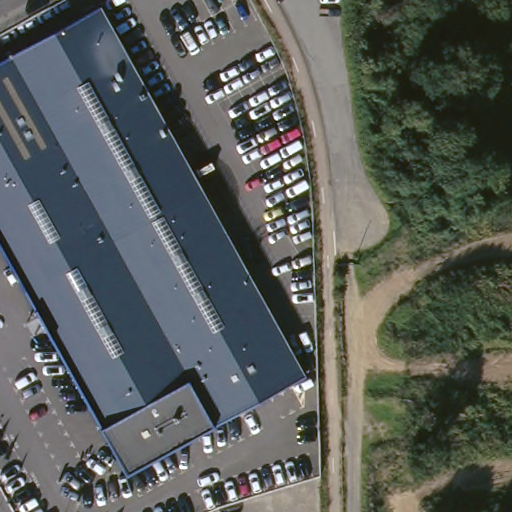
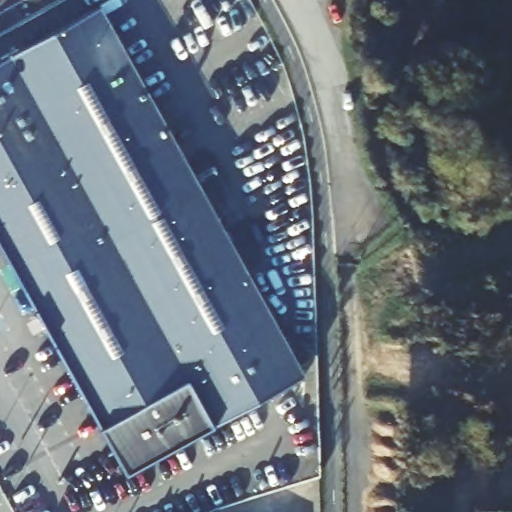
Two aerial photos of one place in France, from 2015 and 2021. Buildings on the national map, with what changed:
unchanged [(0,240),(0,65),(99,10),(302,379),(132,475),(0,240)]

